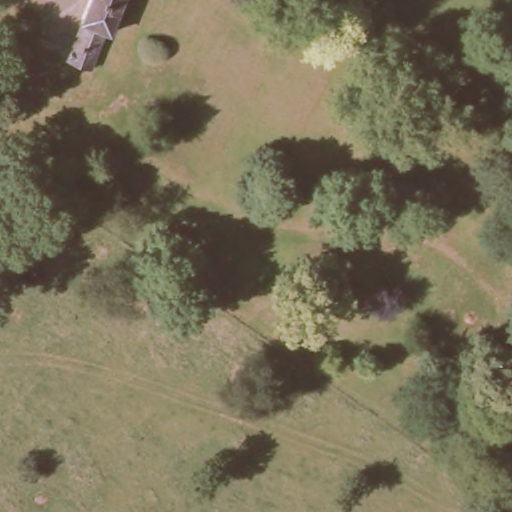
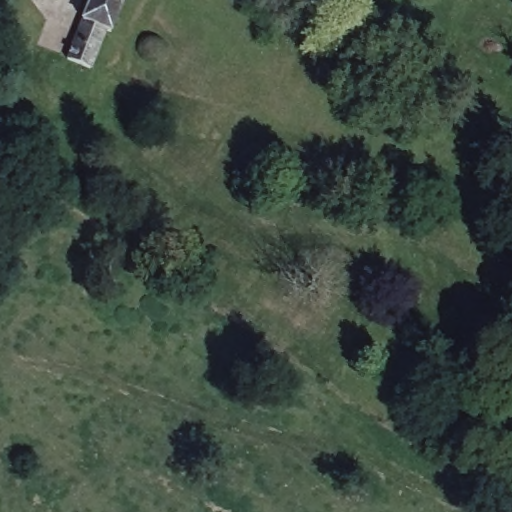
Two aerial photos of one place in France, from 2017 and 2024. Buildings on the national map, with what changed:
unchanged [(76,53),(98,0),(130,0),(121,23),(117,22),(101,64),(97,62),(93,76),(67,65),(72,52),(76,53)]

